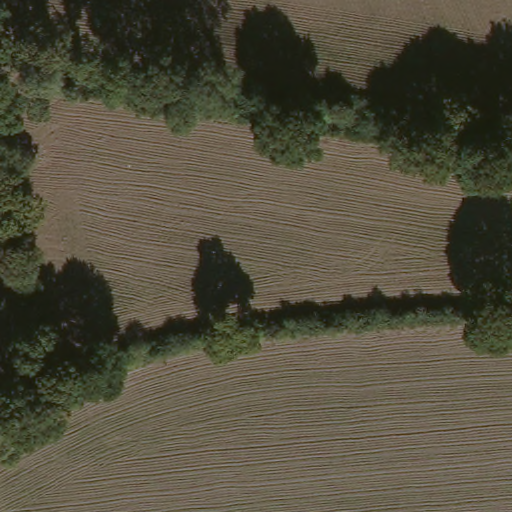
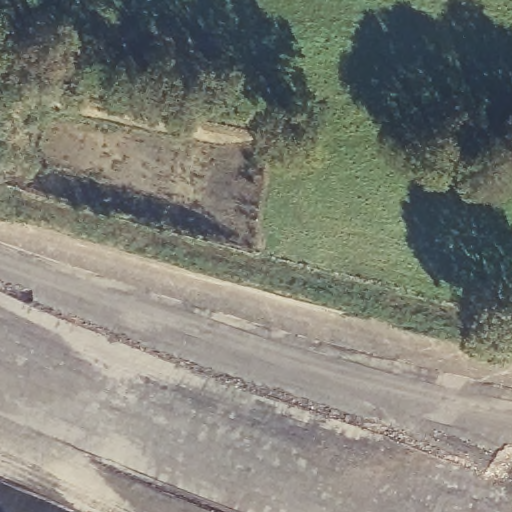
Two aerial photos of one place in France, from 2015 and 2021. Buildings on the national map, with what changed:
[]

